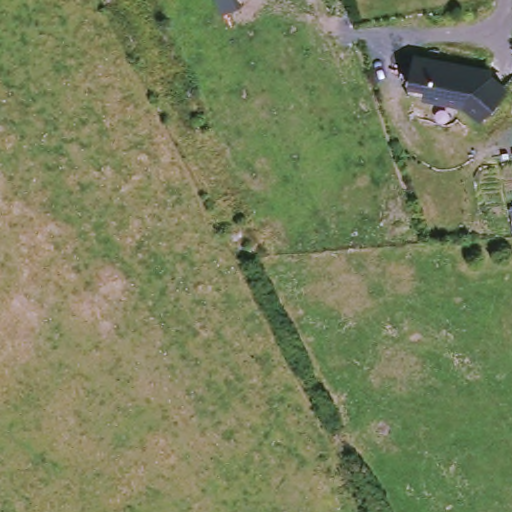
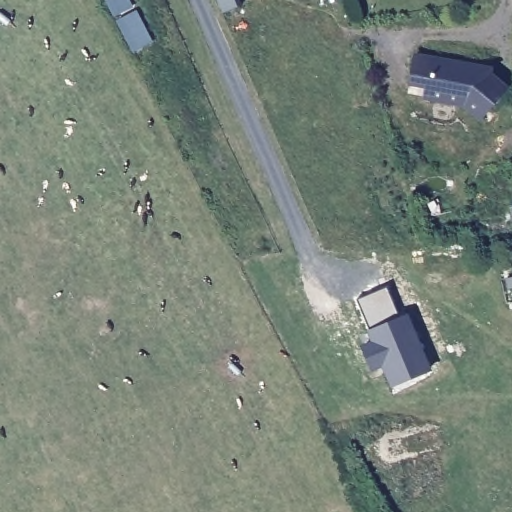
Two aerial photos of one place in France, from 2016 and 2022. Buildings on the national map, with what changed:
new [(134,59),(108,0),(131,0),(154,47),(134,59)]
new [(246,11),(223,22),(214,0),(241,0),(246,11)]
unchanged [(484,65),(501,77),(477,108),(461,95),(421,91),(422,80),(405,78),(409,50),(426,52),(484,59),(484,65)]
new [(511,207),(512,207),(512,213),(511,207)]
new [(386,290),(400,320),(406,317),(430,370),(394,386),(384,364),(373,370),(363,349),(374,343),(356,303),(386,290)]

